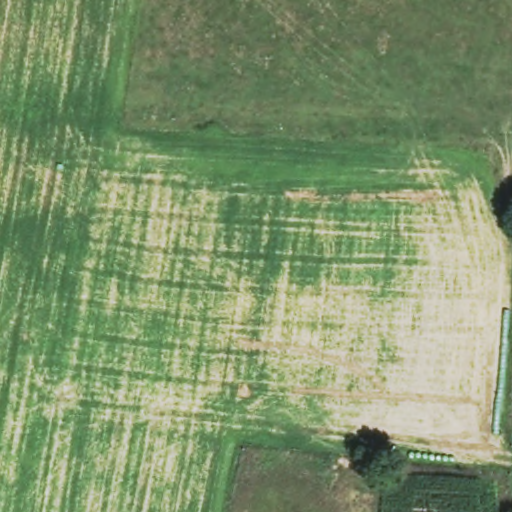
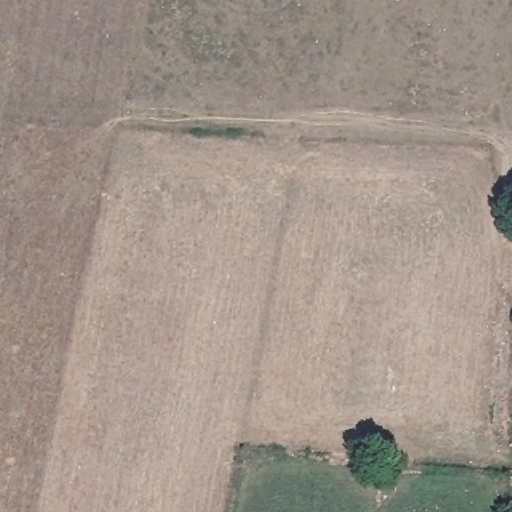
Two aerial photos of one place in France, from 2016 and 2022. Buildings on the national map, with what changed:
[]

